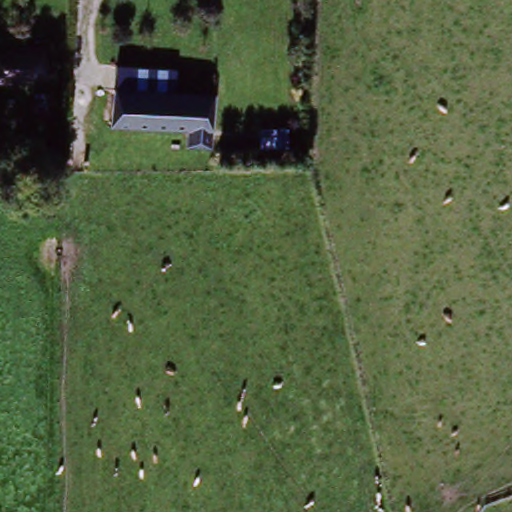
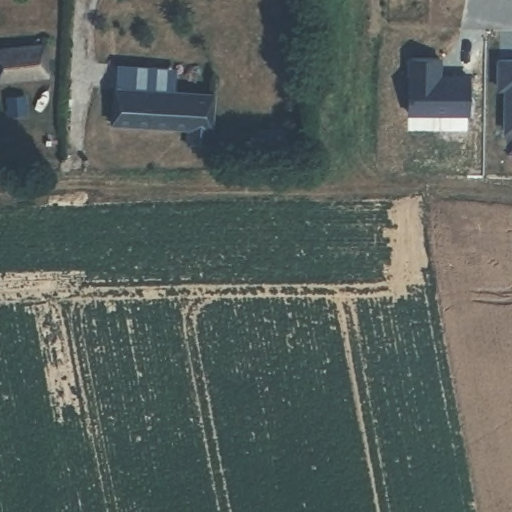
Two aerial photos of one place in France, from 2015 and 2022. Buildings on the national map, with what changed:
unchanged [(0,43),(47,42),(46,67),(0,67),(0,43)]
new [(410,64),(441,64),(441,84),(451,84),(451,82),(470,82),(469,119),(410,119),(410,64)]
new [(500,65),(512,65),(512,137),(507,137),(507,94),(500,94),(500,65)]
unchanged [(115,90),(115,67),(159,66),(160,89),(115,90)]
unchanged [(176,137),(175,125),(117,127),(115,90),(160,89),(210,88),(211,136),(176,137)]

